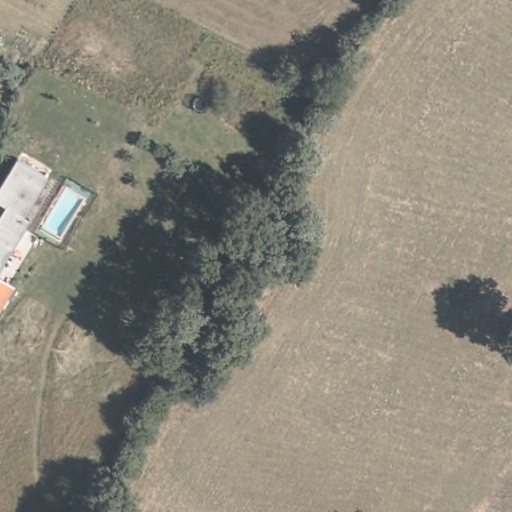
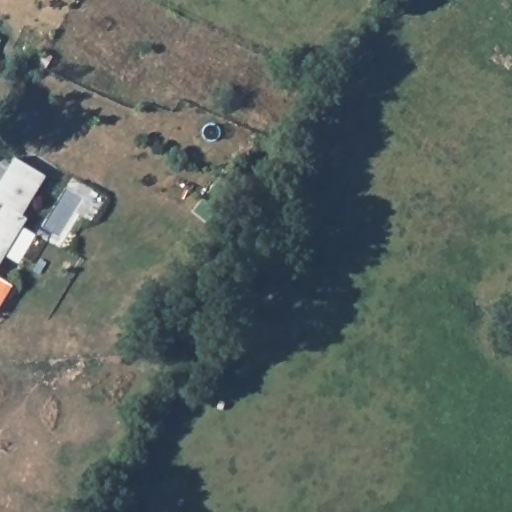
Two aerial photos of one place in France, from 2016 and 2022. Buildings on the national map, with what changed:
unchanged [(10,42),(2,59),(0,58),(0,37),(3,38),(10,42)]
unchanged [(26,216),(30,220),(0,268),(0,211),(4,205),(0,202),(0,183),(15,158),(49,178),(26,216)]
unchanged [(0,305),(0,281),(10,288),(0,305)]

